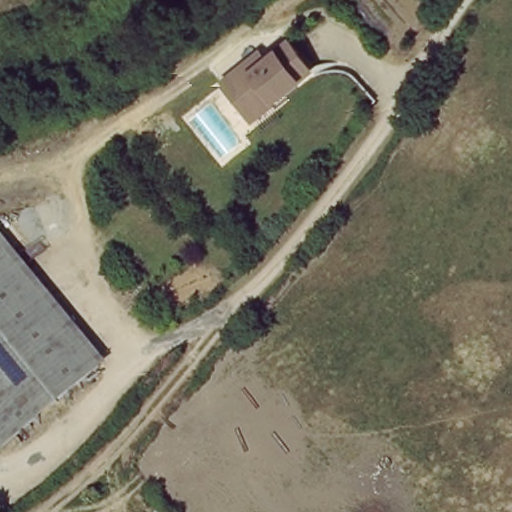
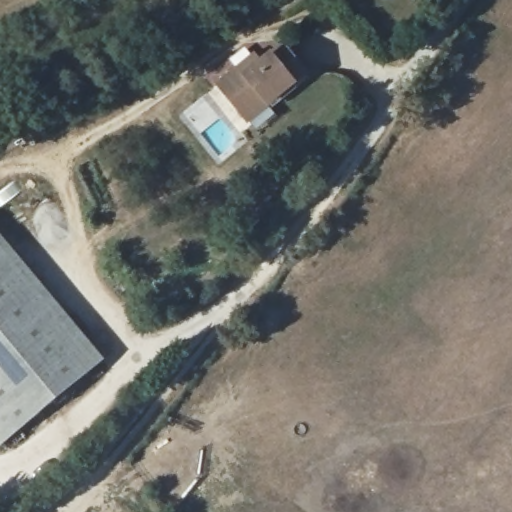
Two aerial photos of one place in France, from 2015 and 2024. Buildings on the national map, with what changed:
unchanged [(246,109),(221,80),(256,50),(263,59),(284,41),(308,68),(273,99),(253,117),(246,109)]
unchanged [(0,458),(0,236),(110,369),(0,458)]

